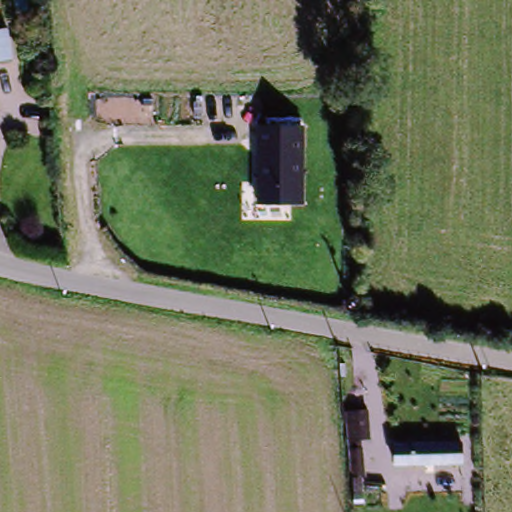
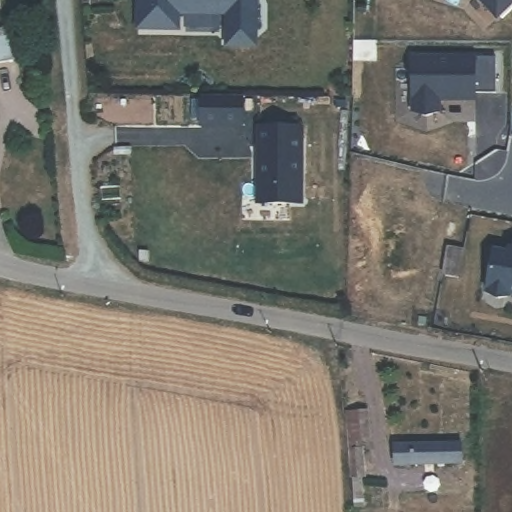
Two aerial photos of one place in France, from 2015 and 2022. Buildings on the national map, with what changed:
new [(175,19),(175,35),(135,35),(136,0),(255,0),(254,36),(253,53),(225,53),(225,35),(225,20),(175,19)]
new [(478,0),(512,0),(512,6),(496,20),(478,0)]
unchanged [(11,34),(16,66),(0,69),(0,36),(11,34)]
new [(495,94),(464,95),(464,102),(438,102),(438,113),(425,118),(411,113),(411,59),(495,58),(495,94)]
new [(474,102),(464,102),(464,95),(474,94),(474,102)]
unchanged [(304,205),(256,205),(258,128),(304,128),(304,205)]
new [(510,251),(512,251),(512,256),(509,256),(510,251)]
new [(510,299),(498,300),(487,295),(494,253),(512,257),(512,297),(511,297),(510,299)]
unchanged [(362,475),(363,503),(355,504),(352,448),(353,447),(352,410),(371,409),(372,433),(362,434),(365,474),(362,475)]
unchanged [(395,464),(394,443),(461,441),(462,461),(434,463),(435,472),(424,473),(423,463),(395,464)]

